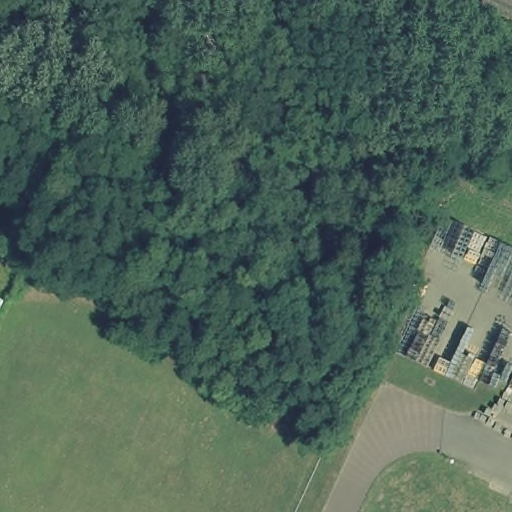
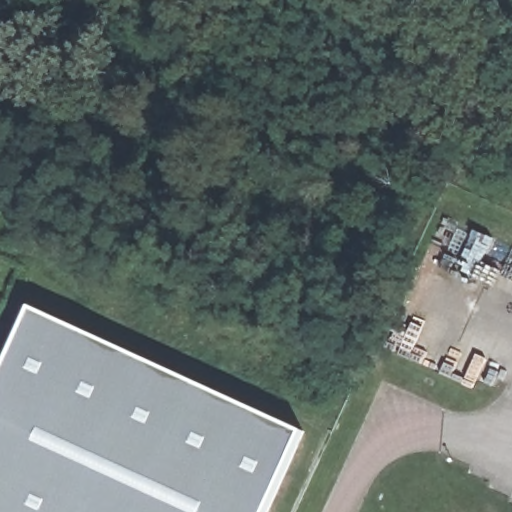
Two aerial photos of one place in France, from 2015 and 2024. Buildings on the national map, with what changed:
new [(306,435),(271,512),(0,512),(0,381),(30,310),(306,435)]

